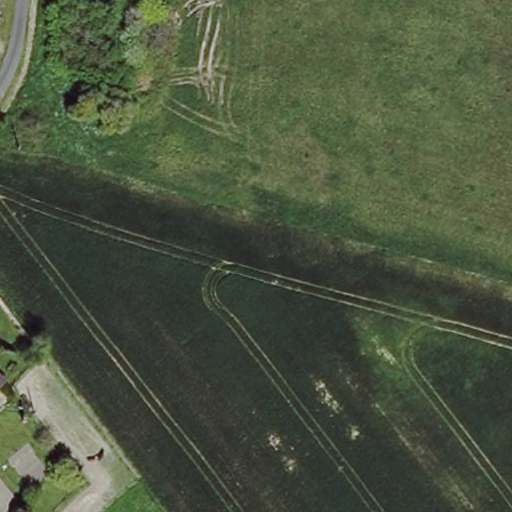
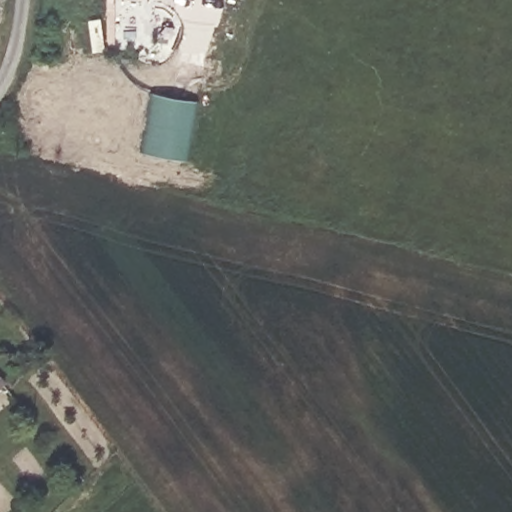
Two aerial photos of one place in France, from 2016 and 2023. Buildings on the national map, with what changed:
new [(199,99),(189,162),(146,152),(156,92),(199,99)]
unchanged [(5,379),(0,385),(0,374),(5,379)]

